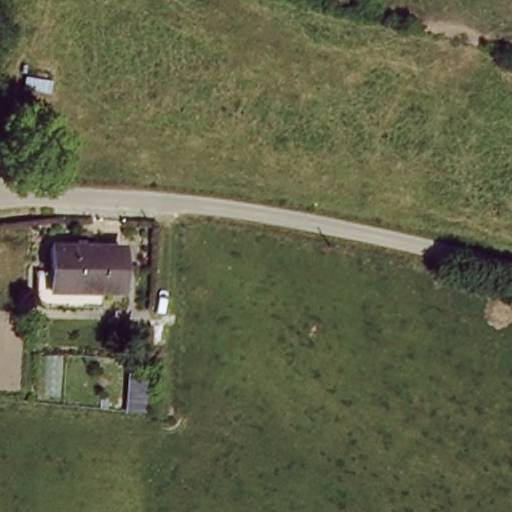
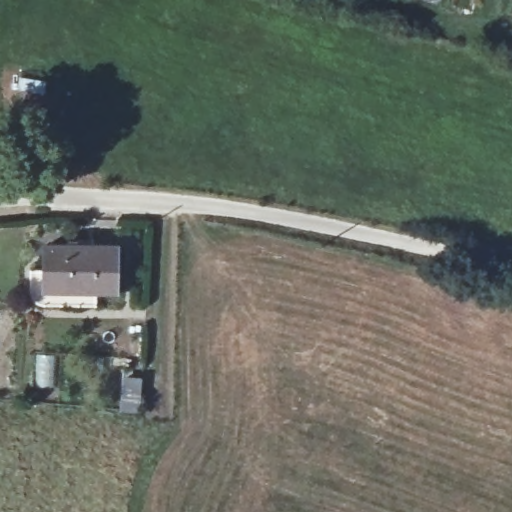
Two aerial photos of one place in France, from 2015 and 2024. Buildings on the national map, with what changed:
unchanged [(113,286),(43,282),(42,240),(114,242),(113,286)]
unchanged [(143,385),(142,414),(122,412),(123,384),(143,385)]

